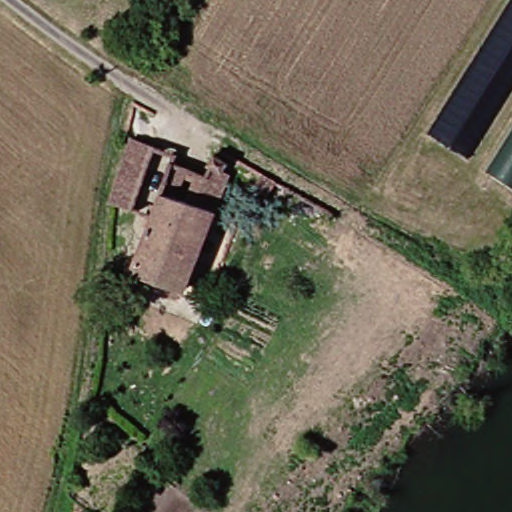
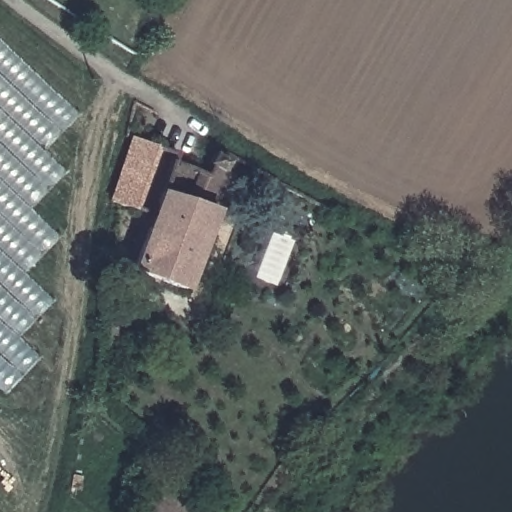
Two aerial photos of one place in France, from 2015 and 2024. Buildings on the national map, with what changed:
demolished [(468,158),(429,132),(511,0),(512,0),(512,88),(468,158)]
new [(0,40),(77,115),(42,152),(65,173),(30,210),(57,239),(24,273),(51,301),(16,337),(37,359),(2,396),(0,395),(0,40)]
demolished [(483,170),(512,124),(512,188),(483,170)]
unchanged [(140,132),(161,142),(134,205),(108,193),(140,132)]
unchanged [(163,190),(177,162),(207,173),(212,165),(217,151),(235,157),(227,170),(235,173),(221,210),(192,290),(135,270),(163,190)]

